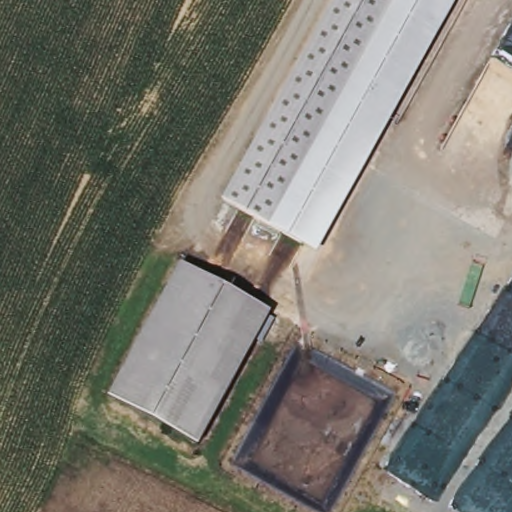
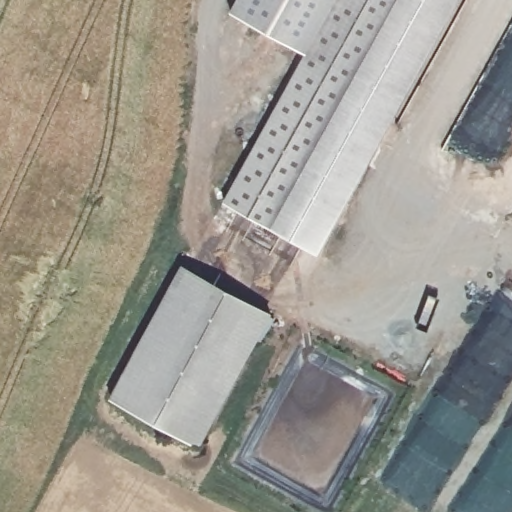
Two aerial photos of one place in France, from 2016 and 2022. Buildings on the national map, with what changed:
unchanged [(243,209),(223,197),(332,0),(359,0),(243,209)]
new [(229,10),(235,0),(332,0),(304,51),(229,10)]
unchanged [(324,257),(243,209),(359,0),(462,0),(324,257)]
unchanged [(203,443),(112,397),(182,266),(272,316),(203,443)]

